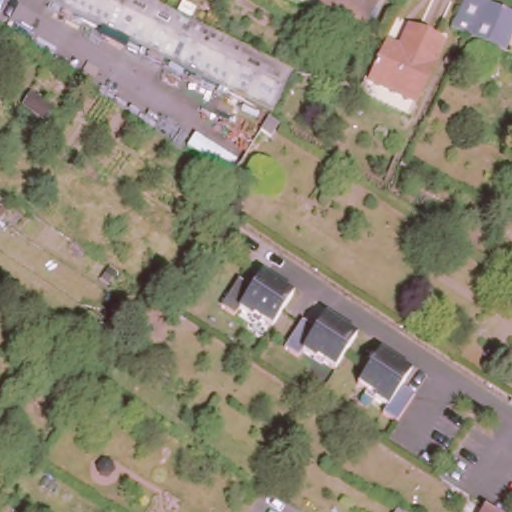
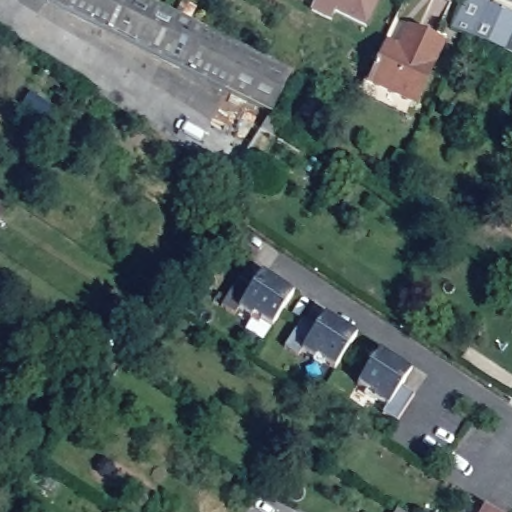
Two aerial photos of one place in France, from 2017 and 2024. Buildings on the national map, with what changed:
unchanged [(290,69),(269,107),(54,0),(153,0),(290,69)]
unchanged [(365,20),(323,0),(374,0),(365,20)]
unchanged [(490,3),(475,37),(467,34),(464,33),(452,28),(466,0),(492,0),(490,3)]
unchanged [(512,41),(507,51),(475,37),(490,3),(512,13),(512,41)]
unchanged [(444,44),(412,101),(367,77),(376,59),(387,39),(400,46),(410,26),(444,44)]
unchanged [(54,104),(45,118),(20,105),(30,91),(54,104)]
unchanged [(257,125),(265,113),(275,119),(267,131),(257,125)]
unchanged [(2,211),(0,214),(0,211),(2,211)]
unchanged [(250,279),(255,271),(259,273),(287,293),(265,325),(247,313),(246,315),(233,307),(229,313),(215,304),(233,277),(246,286),(250,279)]
unchanged [(327,368),(310,356),(309,358),(295,349),(291,356),(277,346),(295,319),(309,328),(313,322),(319,314),(322,316),(350,335),(327,368)]
unchanged [(405,365),(409,367),(404,375),(399,381),(412,390),(394,417),(380,408),(385,401),(372,392),(373,390),(355,378),(377,345),(405,365)]
unchanged [(496,512),(484,512),(487,506),(496,512)]
unchanged [(404,512),(401,512),(402,510),(404,512)]

